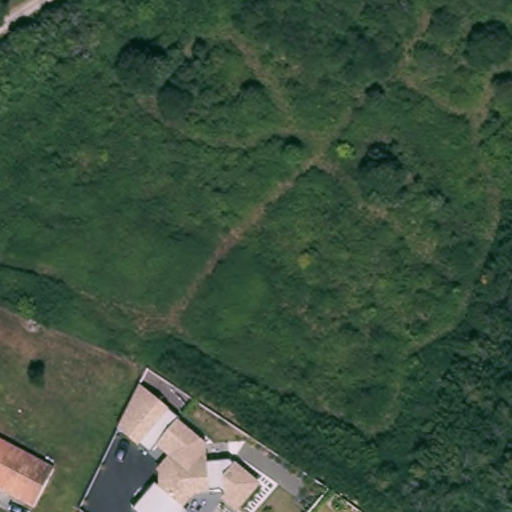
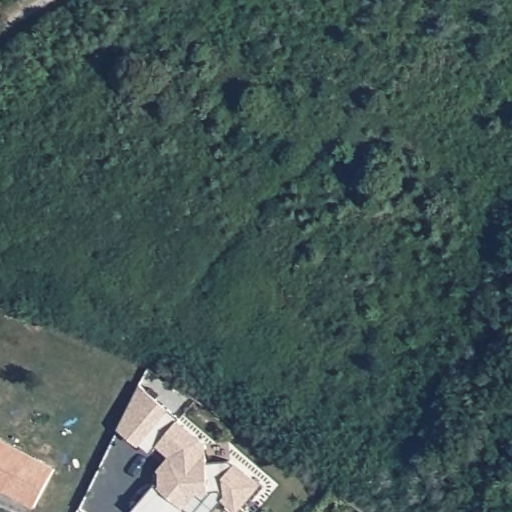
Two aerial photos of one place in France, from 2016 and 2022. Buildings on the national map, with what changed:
unchanged [(134,510),(159,480),(158,469),(169,456),(157,445),(150,452),(119,429),(141,386),(207,445),(210,463),(237,462),(261,484),(239,511),(223,499),(226,493),(225,488),(209,489),(210,492),(192,495),(186,508),(191,511),(190,512),(136,512),(134,510)]
unchanged [(39,507),(0,486),(0,439),(1,438),(60,469),(39,507)]

